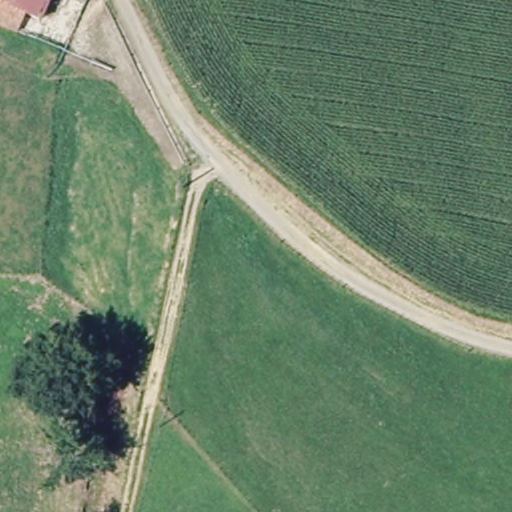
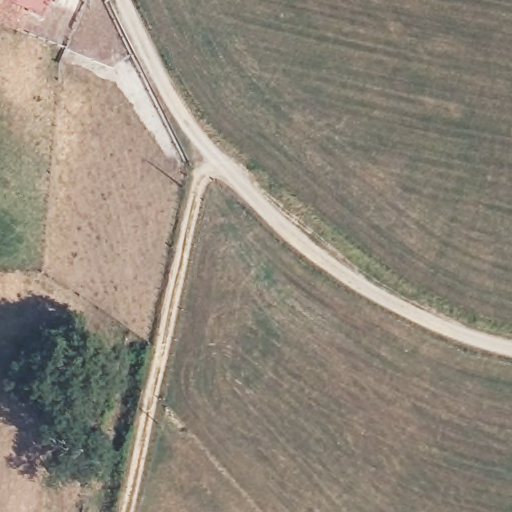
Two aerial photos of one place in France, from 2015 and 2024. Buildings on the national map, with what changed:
unchanged [(20,10),(2,0),(38,0),(31,15),(20,10)]

